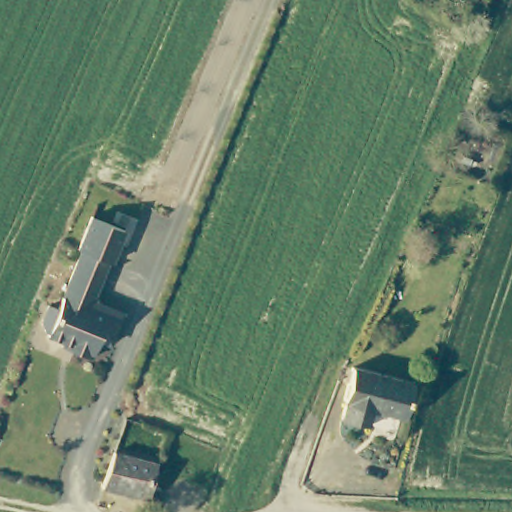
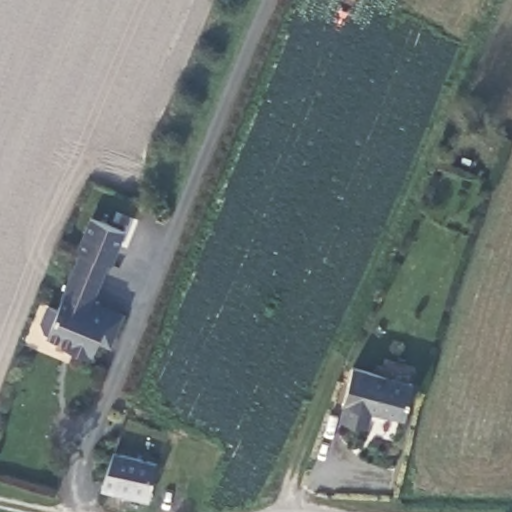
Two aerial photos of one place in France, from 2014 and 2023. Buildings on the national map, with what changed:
unchanged [(107,260),(104,258),(89,299),(121,311),(110,340),(98,336),(91,355),(74,349),(75,345),(46,333),(47,332),(42,329),(40,322),(46,305),(56,308),(77,249),(75,247),(87,214),(118,227),(107,260)]
unchanged [(412,413),(382,407),(377,422),(355,415),(359,400),(355,398),(365,366),(422,381),(412,413)]
unchanged [(121,454),(161,467),(154,498),(110,489),(121,454)]

